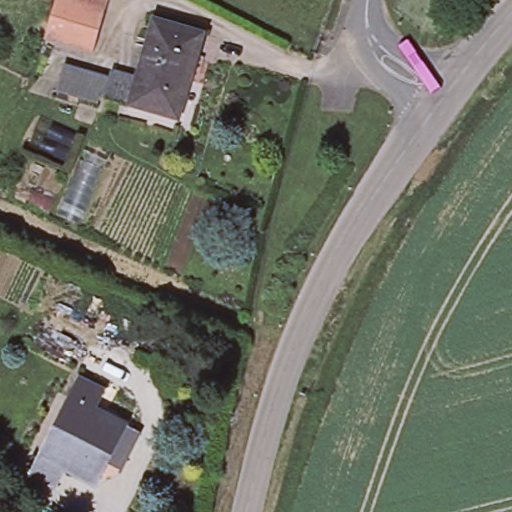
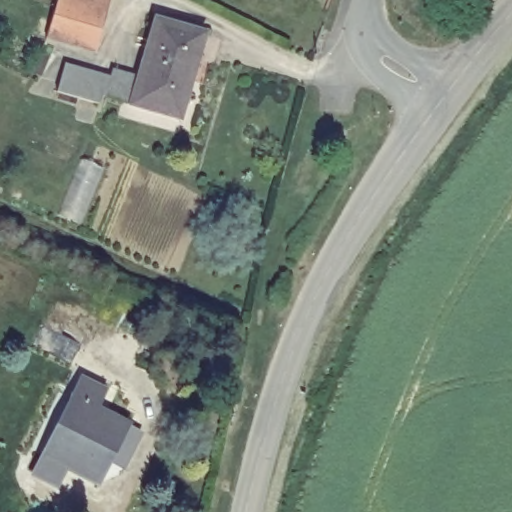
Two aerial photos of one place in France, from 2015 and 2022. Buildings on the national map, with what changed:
unchanged [(98,46),(49,32),(59,0),(112,0),(98,46)]
unchanged [(107,102),(59,89),(68,60),(114,72),(116,66),(141,73),(159,13),(208,27),(183,113),(134,99),(109,92),(107,102)]
unchanged [(107,385),(98,402),(131,420),(100,478),(68,462),(59,479),(37,468),(46,450),(52,452),(81,396),(75,393),(85,373),(107,385)]

